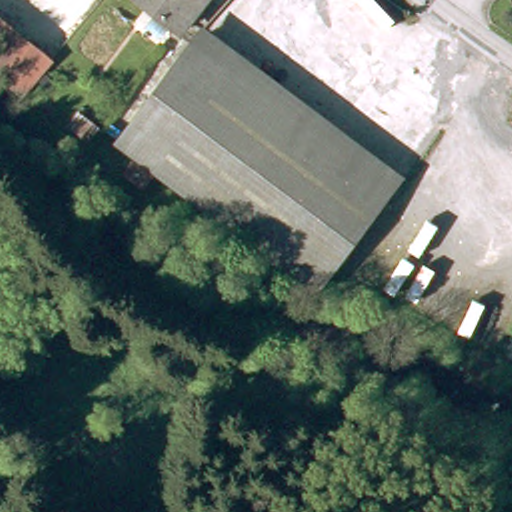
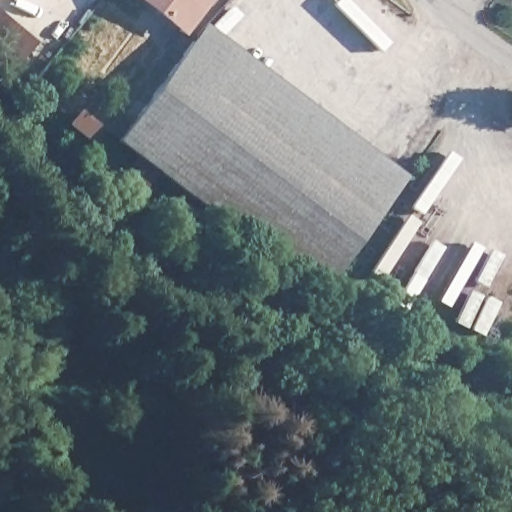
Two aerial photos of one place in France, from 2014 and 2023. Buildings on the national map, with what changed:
unchanged [(142,0),(207,0),(182,31),(142,0)]
unchanged [(50,70),(24,102),(0,83),(0,29),(50,70)]
unchanged [(322,291),(123,138),(200,37),(399,191),(322,291)]
unchanged [(85,135),(69,122),(79,109),(95,122),(85,135)]

